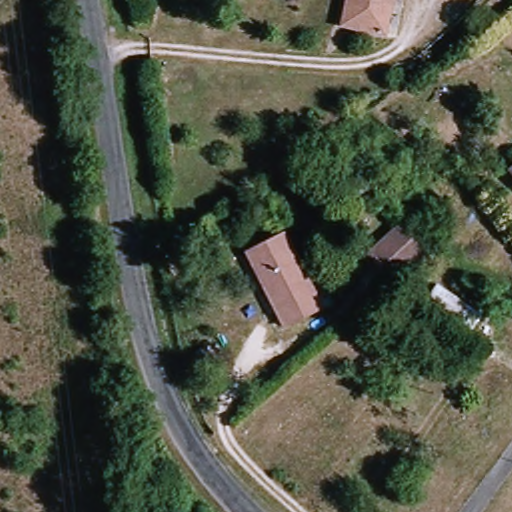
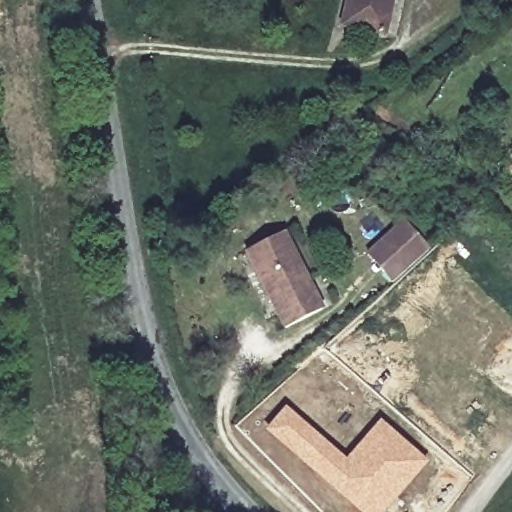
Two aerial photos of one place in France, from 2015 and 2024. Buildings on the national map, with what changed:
unchanged [(349,0),(392,0),(385,33),(351,26),(344,24),(349,0)]
unchanged [(512,170),(512,171),(511,170),(512,170)]
unchanged [(430,250),(394,283),(368,255),(406,221),(430,250)]
unchanged [(324,309),(286,328),(247,251),(284,231),(310,280),(324,309)]
new [(344,457),(380,417),(428,461),(383,512),(359,512),(263,428),(285,405),(344,457)]

